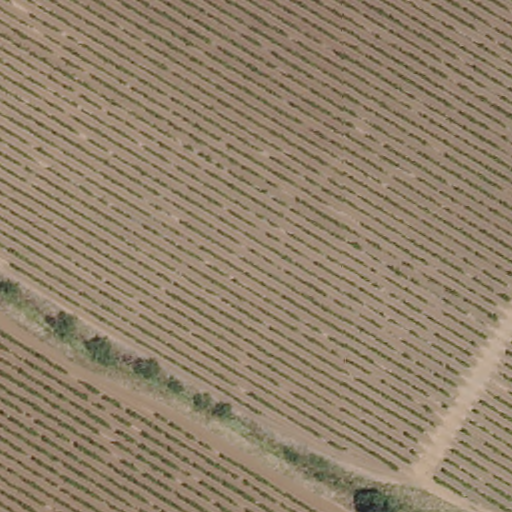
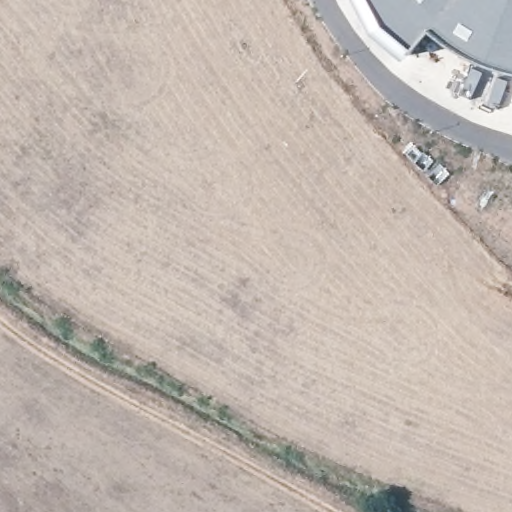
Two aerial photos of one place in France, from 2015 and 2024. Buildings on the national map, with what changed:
new [(460,52),(431,31),(407,61),(375,32),(357,0),(512,0),(512,73),(497,69),(460,52)]

